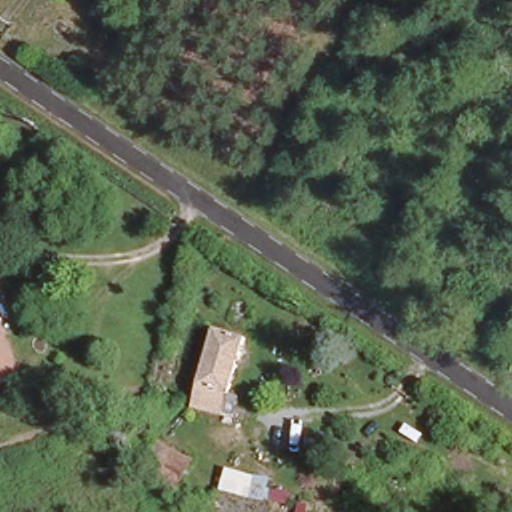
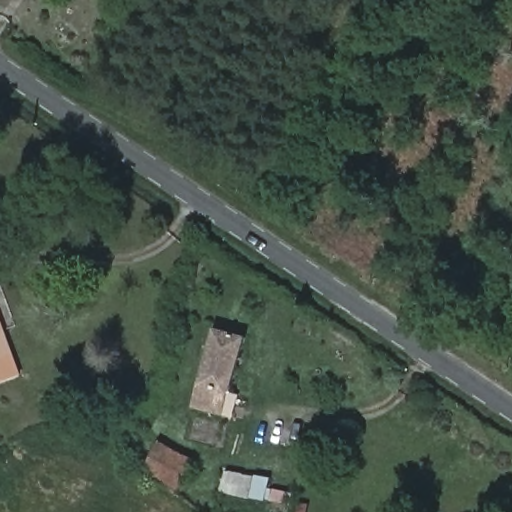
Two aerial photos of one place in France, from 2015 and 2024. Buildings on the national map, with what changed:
unchanged [(0,355),(0,319),(14,348),(0,355)]
unchanged [(216,328),(245,336),(223,409),(196,405),(216,328)]
unchanged [(24,374),(0,384),(0,355),(14,348),(24,374)]
unchanged [(190,459),(173,484),(144,465),(161,439),(190,459)]

